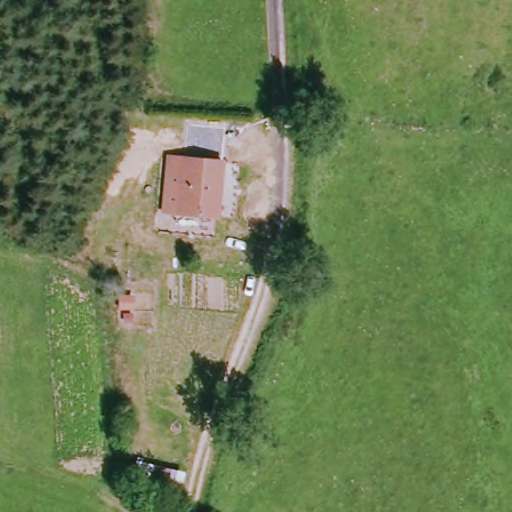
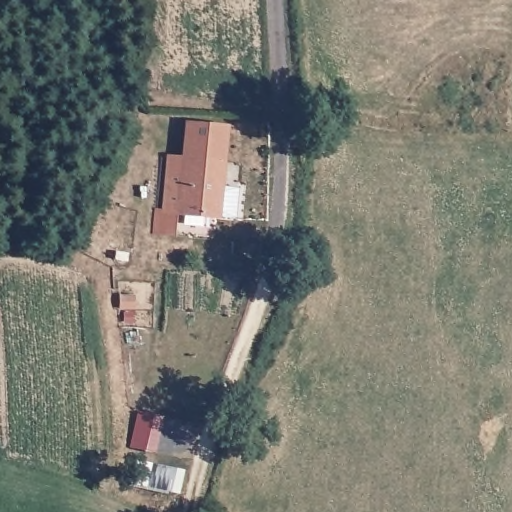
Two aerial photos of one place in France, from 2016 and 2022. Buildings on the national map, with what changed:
unchanged [(224,163),(220,215),(167,212),(170,159),(224,163)]

